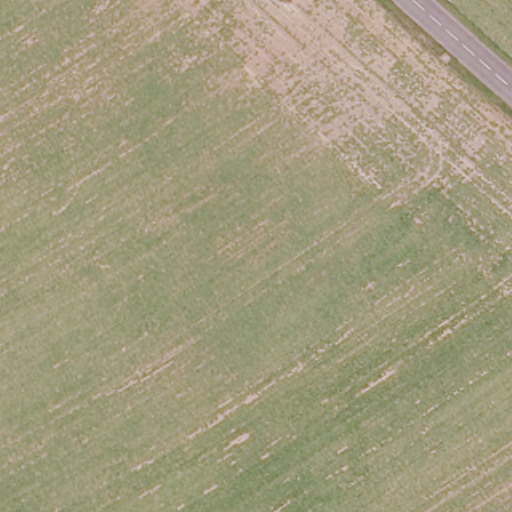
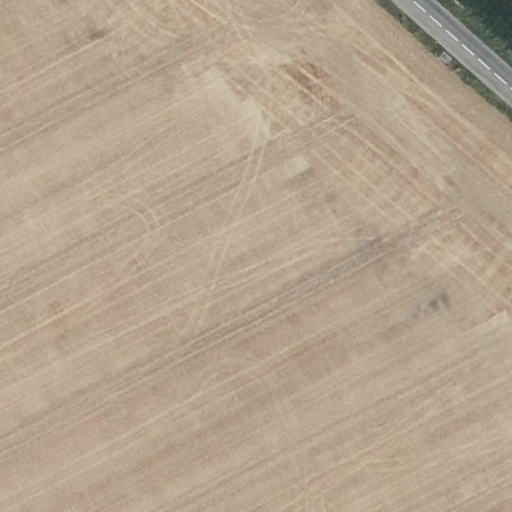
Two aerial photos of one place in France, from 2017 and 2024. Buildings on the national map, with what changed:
[]

